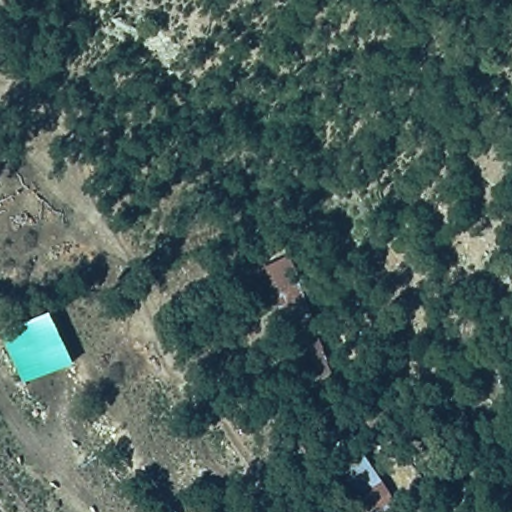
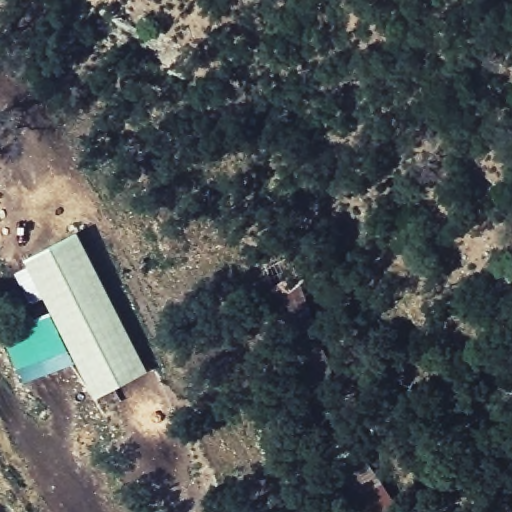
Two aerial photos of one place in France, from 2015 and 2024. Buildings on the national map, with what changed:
new [(95,397),(45,298),(29,304),(15,273),(29,266),(25,259),(76,232),(146,371),(95,397)]
unchanged [(301,381),(264,267),(293,257),(331,367),(301,381)]
unchanged [(49,312),(73,360),(23,381),(3,330),(49,312)]
unchanged [(407,512),(366,512),(318,433),(341,414),(407,512)]

